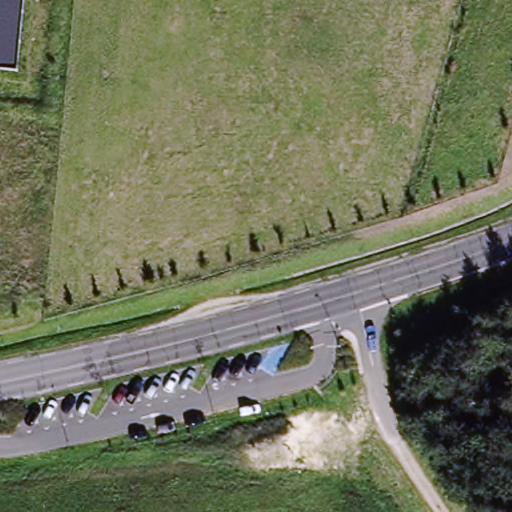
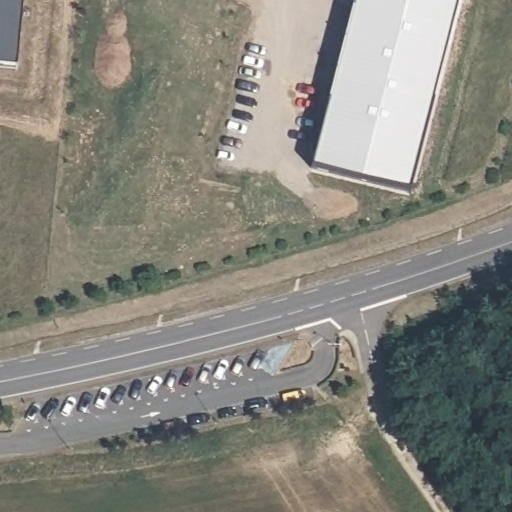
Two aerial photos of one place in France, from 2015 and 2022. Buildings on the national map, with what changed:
unchanged [(16,70),(0,69),(0,0),(23,0),(16,70)]
new [(410,194),(311,169),(354,0),(461,0),(410,194)]

